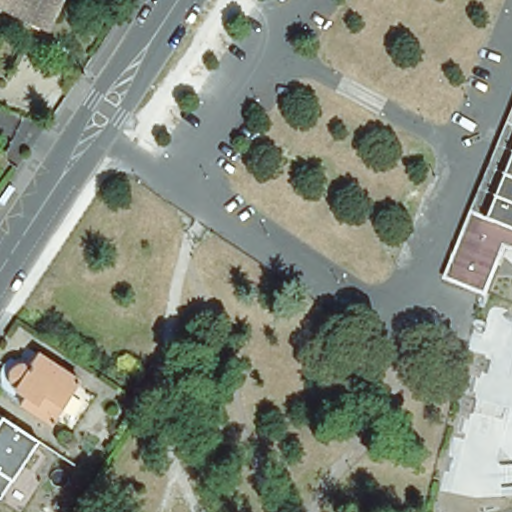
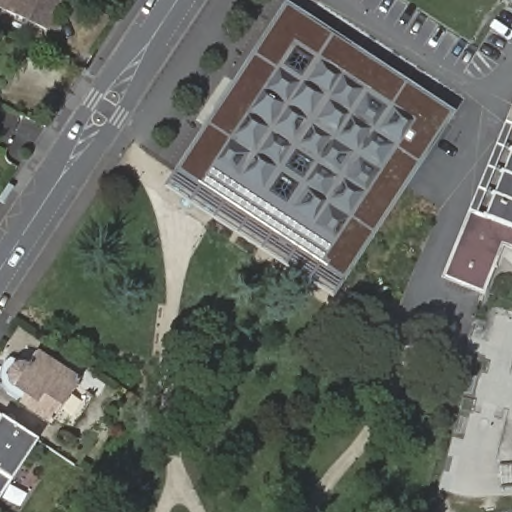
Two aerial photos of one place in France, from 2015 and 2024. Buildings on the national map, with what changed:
unchanged [(0,9),(0,0),(61,0),(46,31),(0,9)]
new [(341,274),(172,167),(281,4),(443,111),(341,274)]
unchanged [(512,112),(512,125),(507,123),(512,112)]
unchanged [(512,125),(512,167),(491,219),(471,211),(507,123),(512,125)]
unchanged [(471,211),(491,219),(512,167),(512,250),(501,245),(482,291),(481,291),(445,276),(471,211)]
unchanged [(13,392),(12,392),(12,391),(11,390),(10,389),(9,388),(9,387),(8,386),(8,385),(8,384),(8,383),(8,382),(8,381),(8,380),(8,379),(8,378),(9,377),(9,376),(10,374),(11,373),(12,372),(13,372),(14,371),(15,370),(16,370),(17,369),(18,369),(19,369),(20,369),(21,369),(22,369),(23,369),(24,370),(25,370),(26,371),(27,371),(31,364),(36,358),(78,386),(51,429),(8,401),(13,392)]
unchanged [(18,454),(0,481),(0,442),(18,454)]
demolished [(50,487),(64,496),(53,512),(41,512),(35,509),(50,487)]

